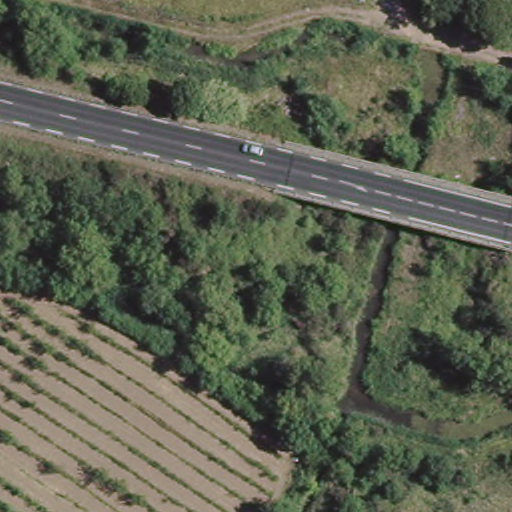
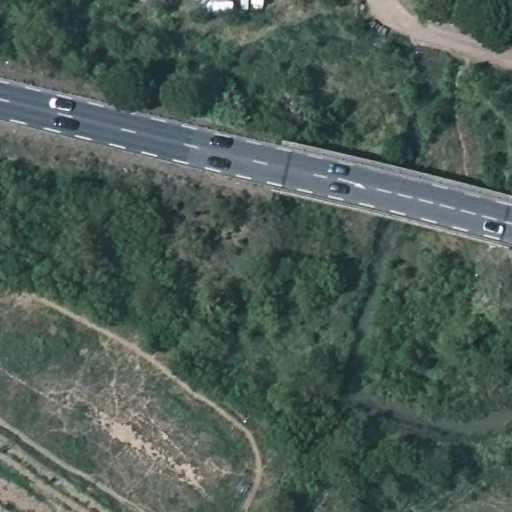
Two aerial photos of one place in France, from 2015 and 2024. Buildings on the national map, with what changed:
unchanged [(490,0),(512,0),(512,4),(496,12),(490,0)]

